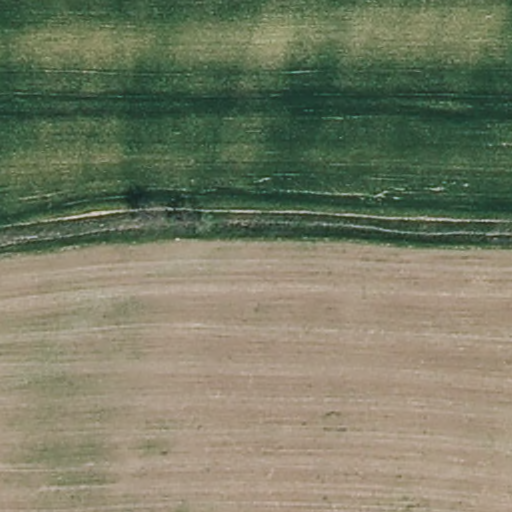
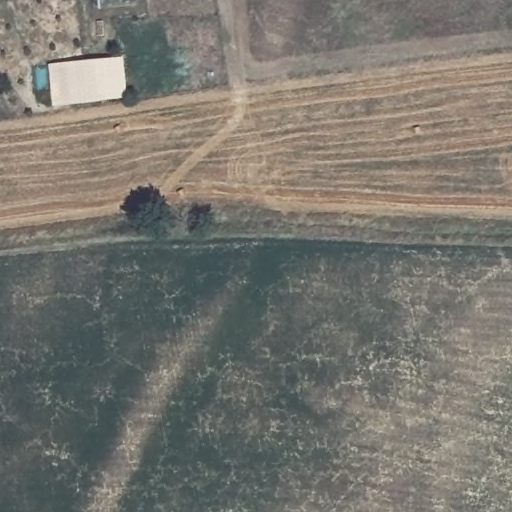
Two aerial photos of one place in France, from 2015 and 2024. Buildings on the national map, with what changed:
new [(49,65),(123,57),(127,99),(54,107),(49,65)]

